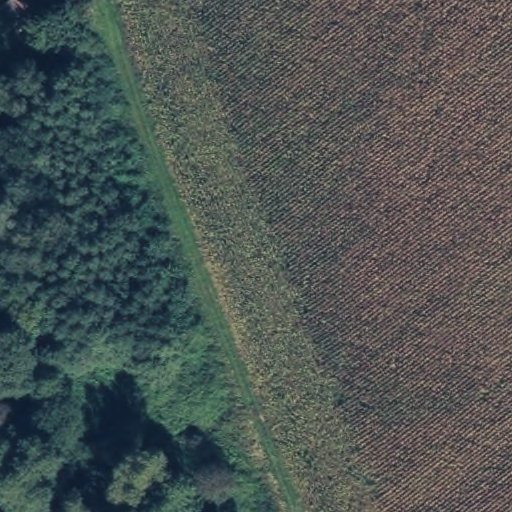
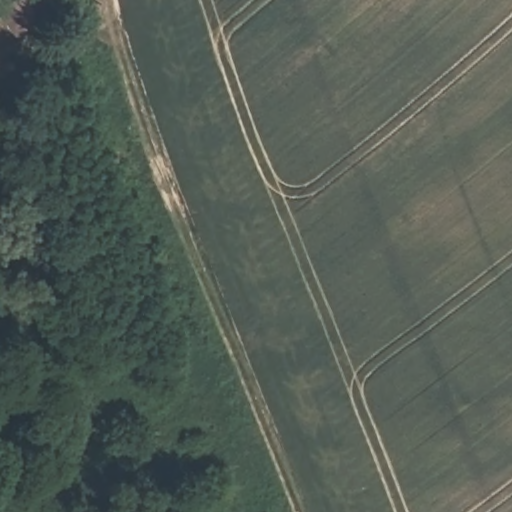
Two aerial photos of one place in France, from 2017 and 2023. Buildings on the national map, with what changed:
unchanged [(54,15),(18,37),(0,10),(0,8),(14,0),(45,0),(54,15)]

